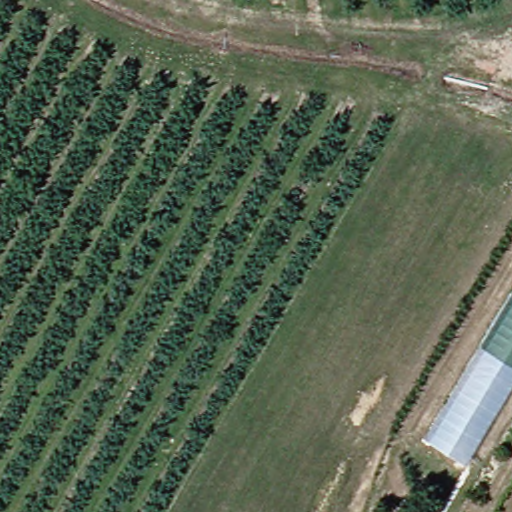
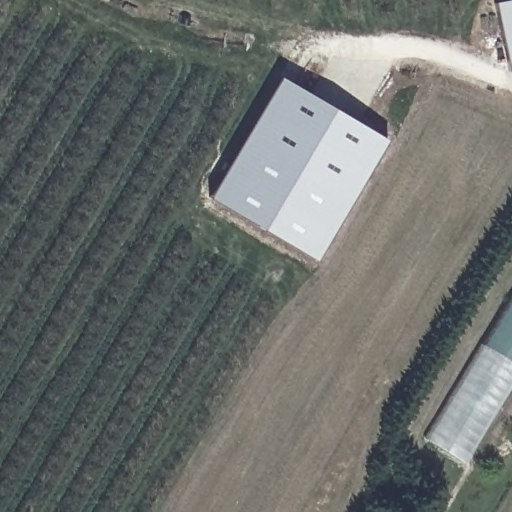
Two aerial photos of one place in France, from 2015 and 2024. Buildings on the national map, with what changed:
new [(508,72),(493,3),(510,0),(512,0),(512,72),(508,72)]
new [(288,76),(396,139),(326,260),(218,197),(288,76)]
unchanged [(464,464),(426,439),(512,298),(512,387),(464,464)]

